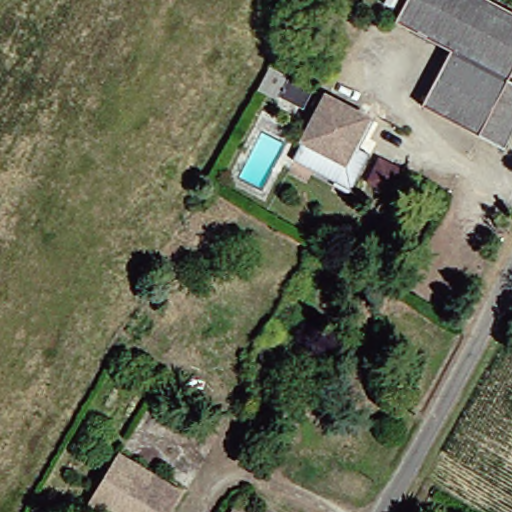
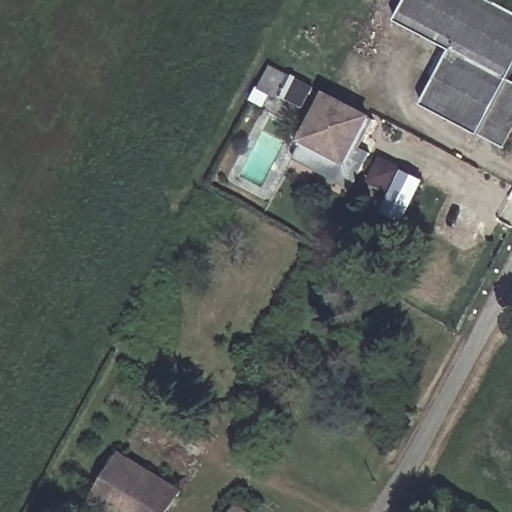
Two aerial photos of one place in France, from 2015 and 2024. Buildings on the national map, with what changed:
unchanged [(512,61),(503,79),(512,84),(512,123),(499,148),(416,104),(445,49),(390,20),(400,0),(486,0),(512,14),(512,61)]
unchanged [(294,100),(269,87),(278,71),(303,84),(294,100)]
unchanged [(287,153),(306,117),(326,127),(340,99),(369,114),(354,142),(365,147),(346,184),(287,153)]
unchanged [(408,167),(393,196),(364,183),(376,155),(408,167)]
unchanged [(158,512),(95,512),(78,501),(108,452),(171,490),(158,512)]
unchanged [(225,512),(229,505),(240,512),(225,512)]

